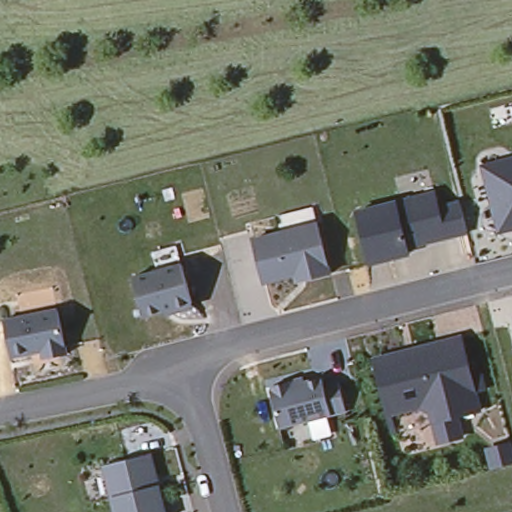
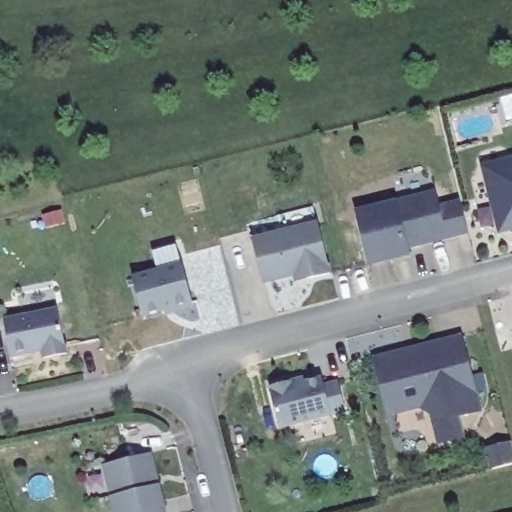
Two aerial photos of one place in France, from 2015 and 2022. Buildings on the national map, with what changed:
unchanged [(497,237),(479,167),(512,159),(512,233),(497,237)]
unchanged [(470,235),(412,250),(414,254),(369,266),(354,211),(397,201),(437,190),(442,206),(461,202),(470,235)]
unchanged [(291,276),(259,285),(249,241),(277,235),(272,217),(309,208),(314,225),(326,275),(304,280),(292,283),(291,276)]
unchanged [(182,265),(192,303),(187,311),(179,312),(173,309),(144,318),(133,279),(182,265)]
unchanged [(57,310),(67,355),(43,359),(42,353),(12,358),(4,321),(57,310)]
unchanged [(462,335),(480,408),(457,413),(463,435),(440,440),(433,410),(424,405),(390,413),(375,357),(462,335)]
unchanged [(272,391),(270,387),(289,382),(290,387),(320,378),(322,385),(338,382),(345,411),(279,428),(270,391),(272,391)]
unchanged [(483,447),(488,445),(507,441),(512,461),(493,465),(487,466),(483,447)]
unchanged [(150,455),(164,512),(115,512),(104,466),(150,455)]

